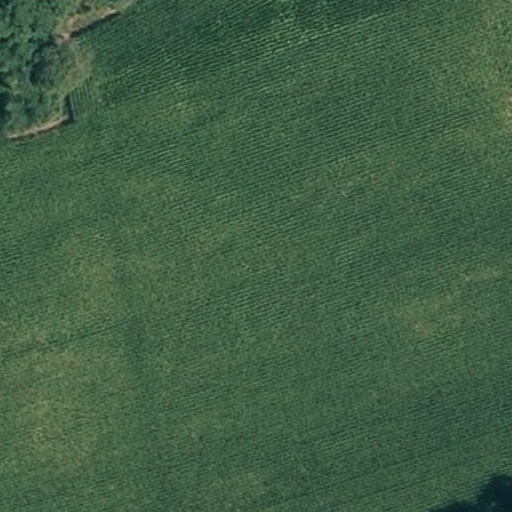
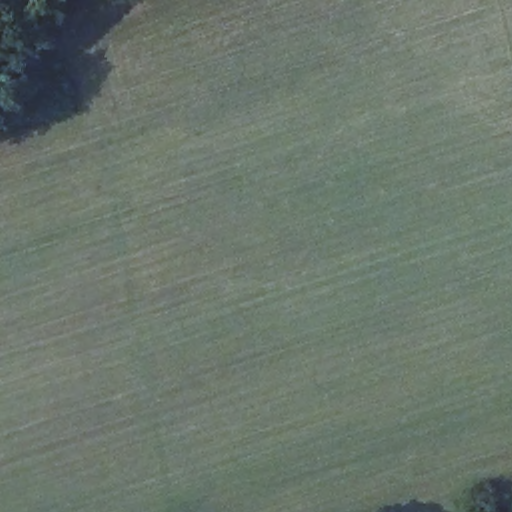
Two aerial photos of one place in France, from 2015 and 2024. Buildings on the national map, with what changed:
[]

